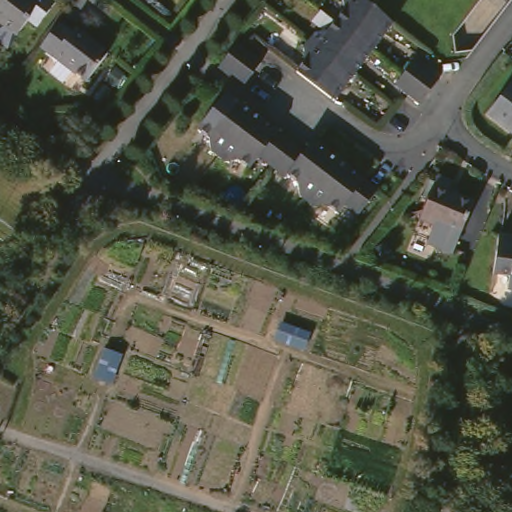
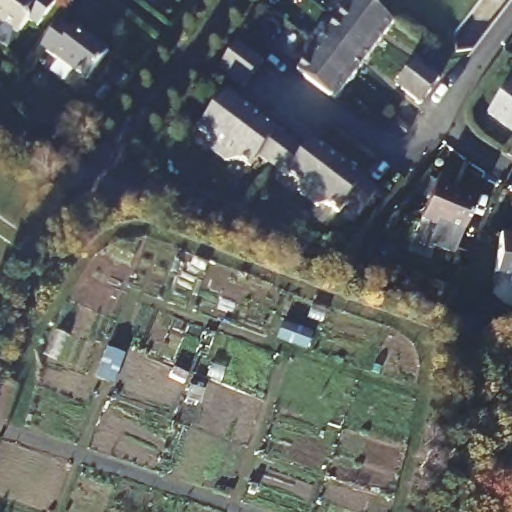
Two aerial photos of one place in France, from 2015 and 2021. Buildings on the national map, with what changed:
unchanged [(30,16),(35,20),(22,35),(0,18),(0,0),(37,0),(42,4),(30,16)]
unchanged [(341,98),(332,91),(304,69),(313,56),(311,45),(317,38),(322,29),(335,29),(345,17),(353,5),(352,0),(373,0),(380,5),(395,17),(401,22),(382,46),(361,73),(341,98)]
unchanged [(52,43),(72,17),(82,26),(85,23),(119,52),(97,79),(52,43)]
unchanged [(229,59),(246,39),(250,34),(273,54),(255,76),(252,79),(229,59)]
unchanged [(405,79),(425,53),(450,72),(430,98),(405,79)]
unchanged [(266,157),(259,166),(246,156),(235,159),(227,154),(220,148),(220,136),(209,127),(238,88),(262,108),(301,138),(315,148),(323,138),(347,157),(340,166),(314,200),(307,195),(305,181),(296,174),(292,178),(279,167),(266,157)]
unchanged [(498,108),(512,93),(512,120),(498,108)]
unchanged [(359,167),(386,188),(366,214),(353,204),(346,213),(335,204),(320,206),(314,200),(340,166),(347,157),(359,167)]
unchanged [(459,247),(435,237),(443,218),(427,211),(446,169),(461,176),(457,185),(482,196),(467,229),(459,247)]
unchanged [(501,271),(506,231),(512,232),(512,273),(501,271)]
unchanged [(286,322),(313,333),(310,342),(308,346),(281,335),(283,330),(286,322)]
unchanged [(111,347),(125,352),(114,380),(100,375),(111,347)]

